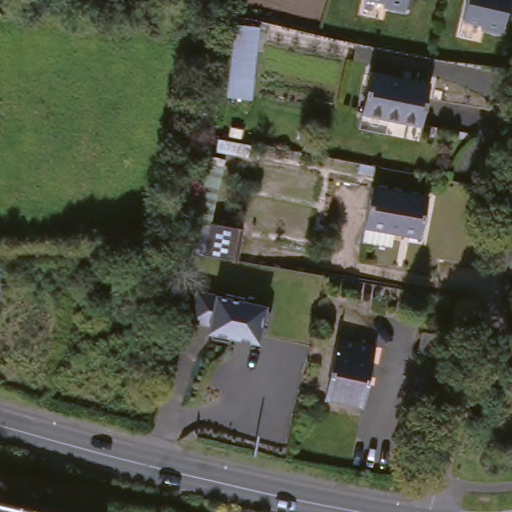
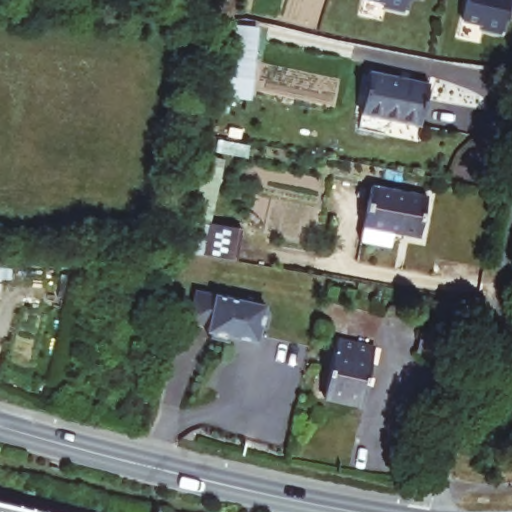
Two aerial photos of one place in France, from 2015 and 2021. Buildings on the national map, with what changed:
unchanged [(387,5),(388,1),(386,0),(411,0),(408,11),(387,5)]
unchanged [(511,8),(506,30),(485,25),(486,20),(466,15),(470,0),(512,0),(512,8),(511,8)]
unchanged [(253,102),(226,98),(237,24),(262,28),(253,102)]
unchanged [(370,112),(379,69),(440,82),(430,124),(370,112)]
unchanged [(227,169),(215,231),(240,235),(236,262),(182,254),(207,166),(227,169)]
unchanged [(398,229),(395,247),(365,240),(375,184),(436,196),(427,236),(398,229)]
unchanged [(149,298),(156,276),(170,280),(164,302),(149,298)]
unchanged [(204,292),(226,296),(227,292),(245,296),(244,300),(265,303),(270,311),(268,326),(262,325),(259,339),(233,334),(232,341),(214,337),(215,331),(212,330),(213,322),(195,320),(194,319),(199,291),(204,292)]
unchanged [(460,357),(420,348),(425,330),(463,338),(460,357)]
unchanged [(377,348),(363,407),(323,396),(335,338),(377,348)]
unchanged [(0,495),(67,512),(0,512),(0,495)]

